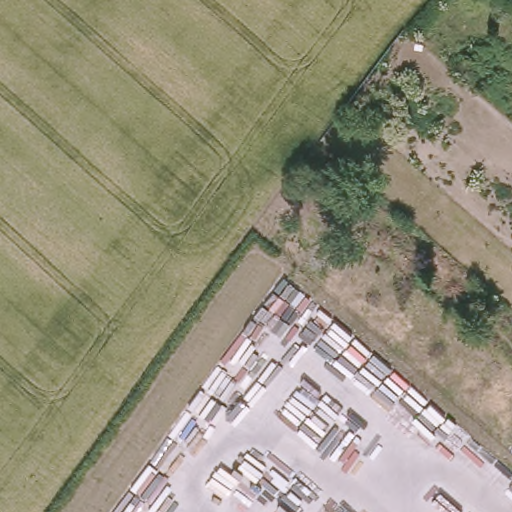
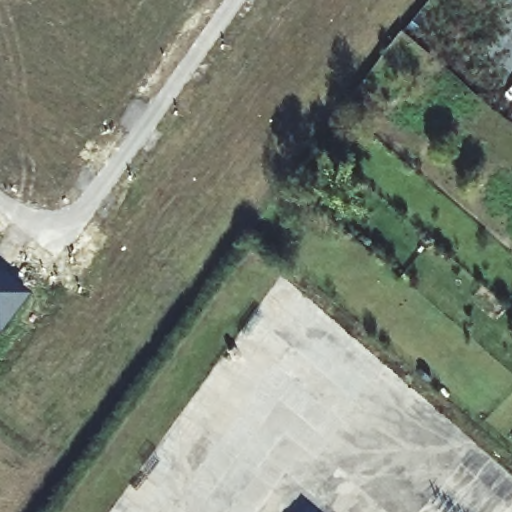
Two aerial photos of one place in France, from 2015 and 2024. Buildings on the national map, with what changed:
new [(0,336),(0,274),(30,297),(0,336)]

